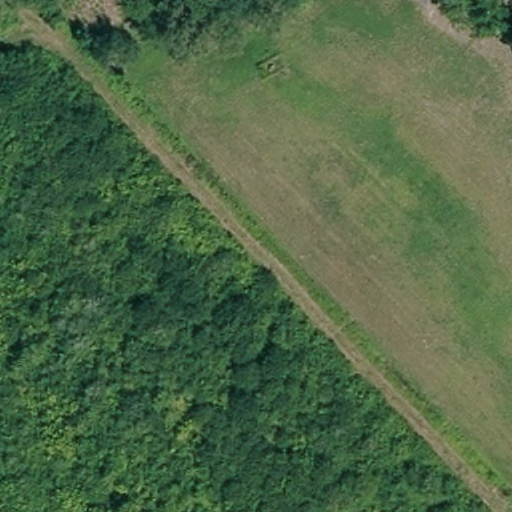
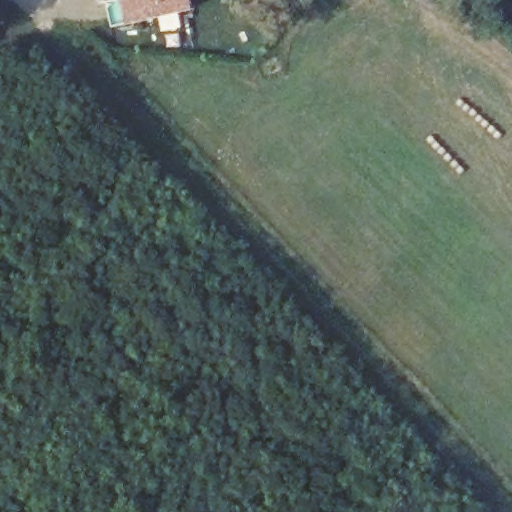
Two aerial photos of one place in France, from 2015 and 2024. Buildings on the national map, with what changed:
new [(113,27),(107,2),(107,0),(191,0),(193,10),(113,27)]

